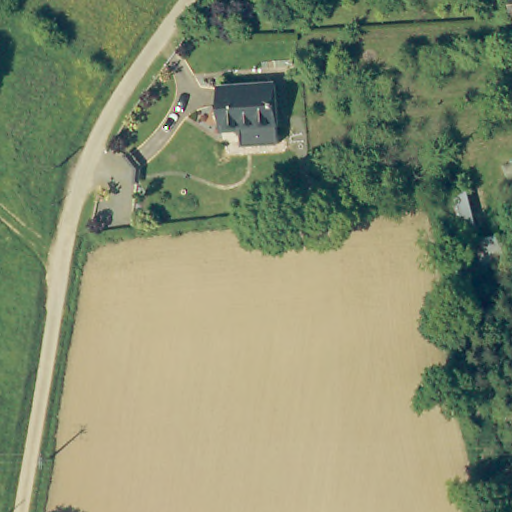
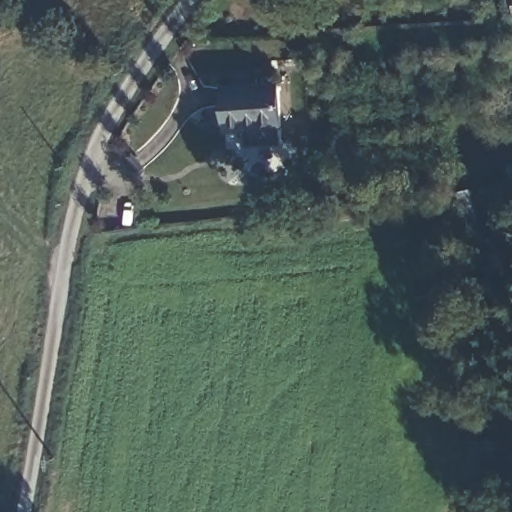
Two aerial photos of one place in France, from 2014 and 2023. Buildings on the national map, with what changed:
unchanged [(511,21),(506,22),(502,0),(512,0),(512,21),(511,21)]
unchanged [(240,142),(238,127),(219,128),(215,85),(270,81),(274,125),(276,142),(240,142)]
unchanged [(473,263),(458,272),(438,196),(466,184),(482,235),(503,228),(507,243),(512,240),(512,256),(473,263)]

